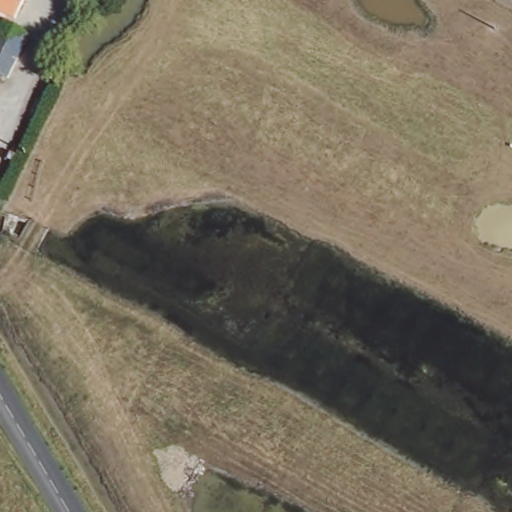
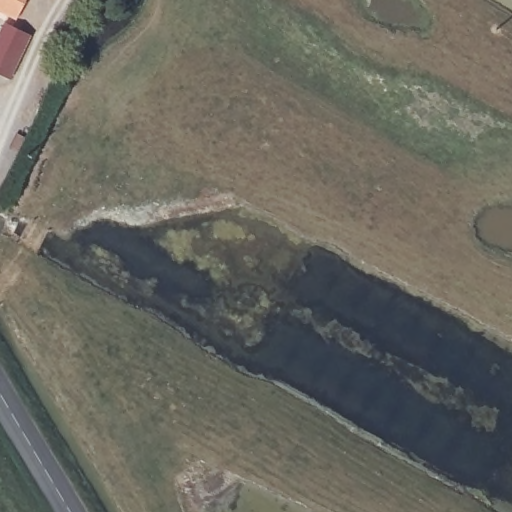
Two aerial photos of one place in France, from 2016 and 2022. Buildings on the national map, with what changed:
unchanged [(0,17),(0,0),(21,0),(10,22),(0,17)]
unchanged [(31,42),(7,90),(0,86),(0,32),(2,28),(31,42)]

